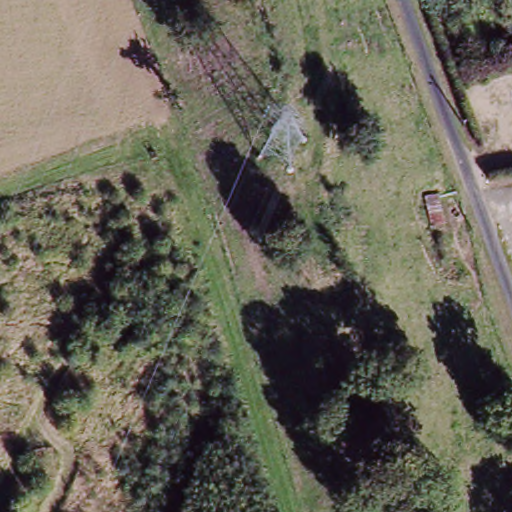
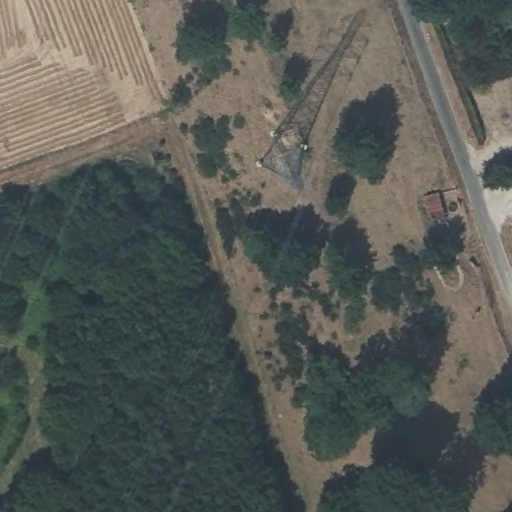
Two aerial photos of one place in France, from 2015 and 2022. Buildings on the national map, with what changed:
[]

